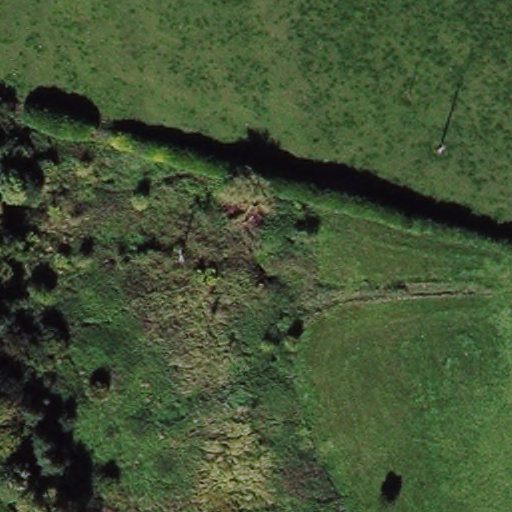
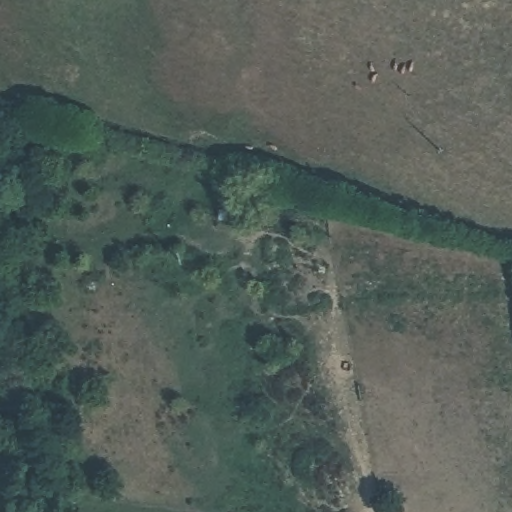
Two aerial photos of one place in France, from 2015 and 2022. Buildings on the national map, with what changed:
[]

